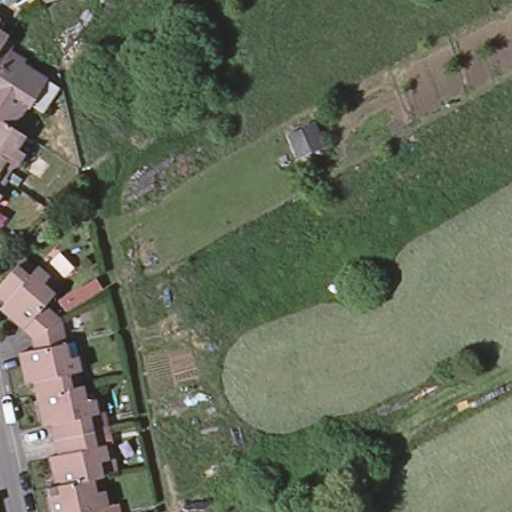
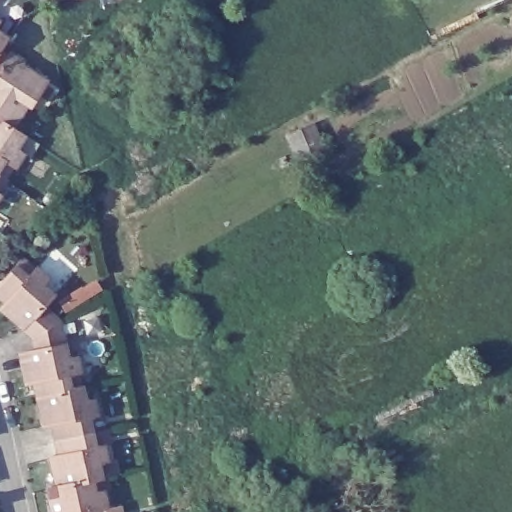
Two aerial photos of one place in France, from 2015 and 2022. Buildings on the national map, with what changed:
unchanged [(2,19),(0,22),(0,18),(2,19)]
unchanged [(10,33),(1,47),(0,49),(0,27),(10,33)]
unchanged [(1,47),(49,78),(33,105),(28,102),(15,126),(0,117),(0,87),(1,85),(0,85),(0,49),(1,47)]
unchanged [(15,126),(27,134),(17,148),(25,153),(17,167),(13,165),(7,177),(0,173),(0,117),(15,126)]
unchanged [(7,177),(8,178),(0,191),(0,173),(7,177)]
unchanged [(2,193),(0,196),(0,192),(2,193)]
unchanged [(19,351),(35,348),(33,337),(23,328),(0,307),(5,300),(0,295),(0,283),(23,257),(35,268),(37,266),(48,276),(43,283),(55,294),(45,305),(61,320),(65,342),(68,357),(77,355),(82,371),(77,372),(80,386),(37,396),(33,380),(25,381),(19,351)]
unchanged [(80,386),(82,386),(85,400),(93,398),(97,414),(88,416),(92,431),(53,439),(50,423),(42,424),(37,396),(80,386)]
unchanged [(49,458),(57,456),(53,439),(92,431),(95,447),(103,445),(107,459),(98,462),(101,476),(90,478),(55,486),(49,458)]
unchanged [(45,488),(55,486),(90,478),(94,493),(102,491),(105,505),(100,506),(101,512),(49,512),(45,488)]

